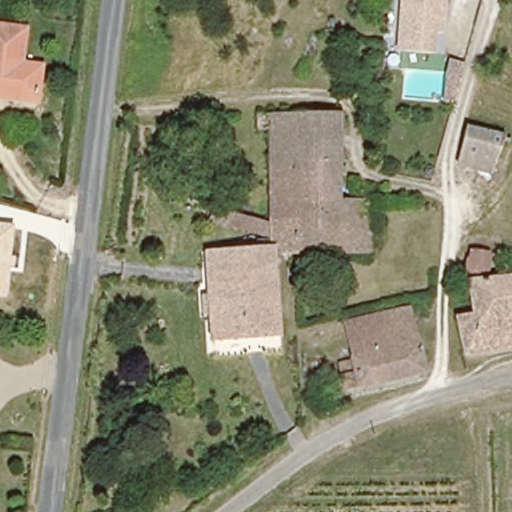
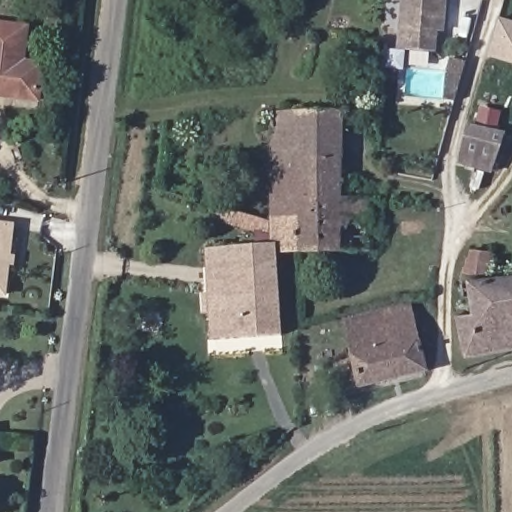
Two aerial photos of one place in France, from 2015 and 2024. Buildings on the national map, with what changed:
unchanged [(408,0),(448,0),(445,36),(438,35),(437,55),(410,54),(404,53),(405,32),(408,0)]
new [(489,56),(500,18),(512,21),(512,63),(489,56)]
unchanged [(21,68),(43,71),(39,103),(0,97),(0,29),(26,33),(21,68)]
unchanged [(450,106),(451,78),(456,62),(470,66),(466,79),(458,106),(450,106)]
unchanged [(269,219),(266,175),(254,176),(252,163),(266,161),(264,136),(252,137),(250,111),(316,110),(331,110),(335,197),(364,198),(364,211),(373,211),(373,249),(308,249),(307,263),(295,263),(295,248),(271,250),(276,333),(209,337),(205,286),(204,244),(270,240),(269,219)]
unchanged [(485,170),(461,163),(455,161),(465,126),(497,136),(485,170)]
unchanged [(0,295),(0,222),(15,224),(6,296),(0,295)]
unchanged [(488,246),(481,266),(467,267),(473,247),(488,246)]
unchanged [(465,327),(462,311),(476,308),(470,278),(512,274),(512,342),(469,351),(465,327)]
unchanged [(354,358),(346,318),(410,306),(422,369),(346,387),(340,361),(354,358)]

